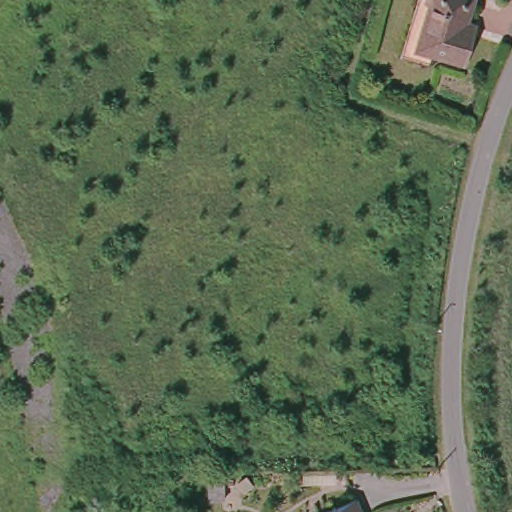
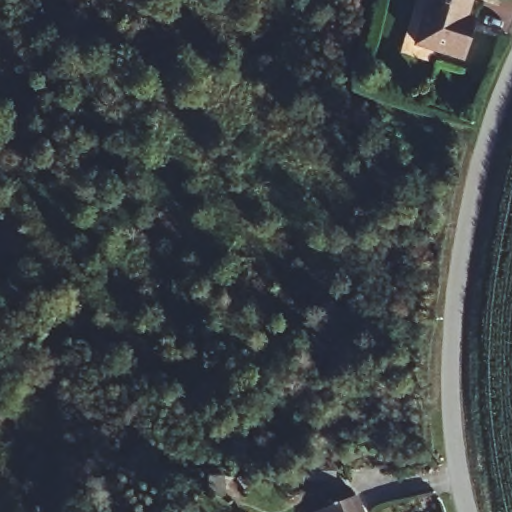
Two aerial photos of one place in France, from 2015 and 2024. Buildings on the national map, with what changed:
unchanged [(470,24),(460,54),(410,36),(423,0),(467,0),(460,20),(470,24)]
unchanged [(362,512),(316,512),(313,505),(350,488),(362,512)]

